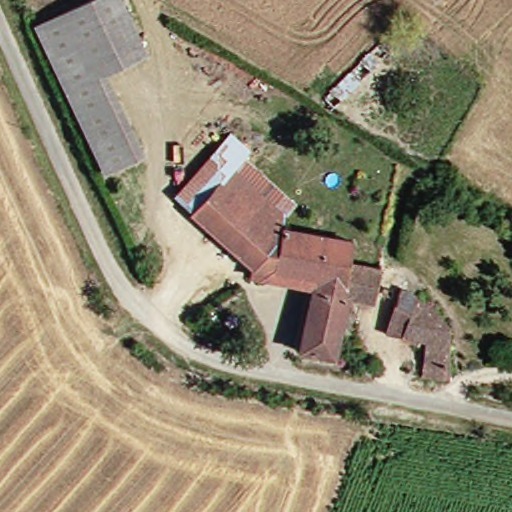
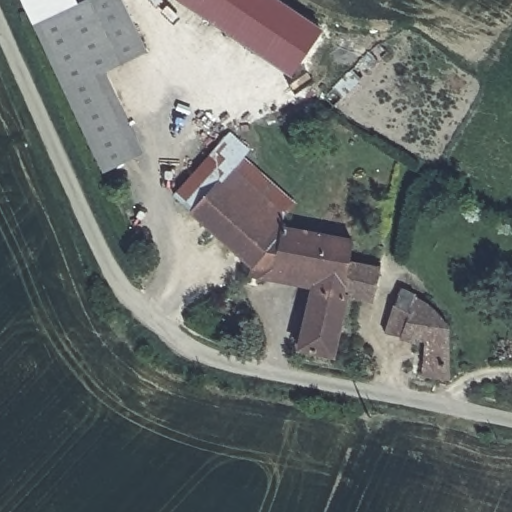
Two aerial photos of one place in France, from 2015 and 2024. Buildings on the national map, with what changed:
new [(79,9),(35,30),(20,0),(74,0),(79,9)]
unchanged [(79,9),(98,0),(116,0),(133,35),(143,57),(95,80),(134,162),(101,178),(31,32),(79,9)]
new [(292,75),(178,0),(280,0),(322,29),(292,75)]
unchanged [(236,133),(254,150),(250,157),(297,199),(286,211),(233,163),(192,209),(177,197),(236,133)]
unchanged [(192,209),(233,163),(286,211),(286,222),(326,230),(319,274),(274,265),(253,261),(192,209)]
unchanged [(308,340),(318,279),(319,274),(326,230),(352,234),(348,259),(380,265),(376,287),(374,301),(364,300),(366,286),(348,283),(336,348),(308,340)]
unchanged [(439,306),(458,329),(456,381),(434,376),(434,340),(419,334),(419,323),(411,321),(413,311),(406,308),(411,291),(439,306)]

